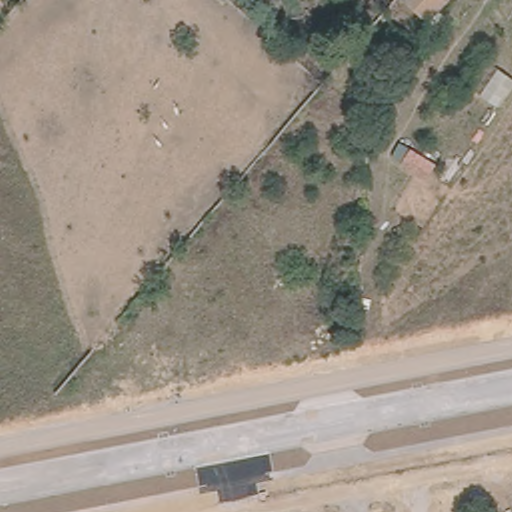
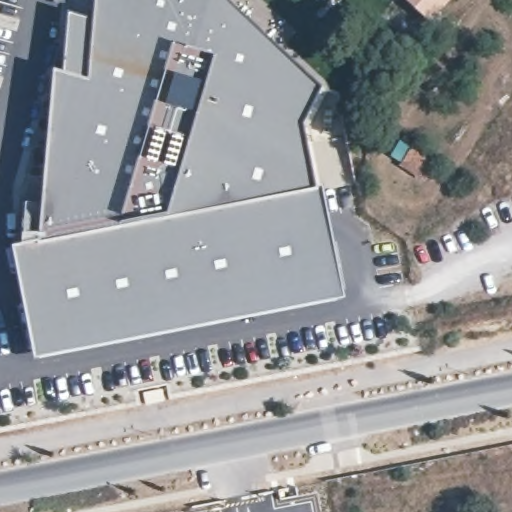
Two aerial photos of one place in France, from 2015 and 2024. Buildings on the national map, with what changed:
new [(43,244),(58,72),(91,82),(98,0),(229,0),(325,89),(306,127),(318,189),(324,188),(346,292),(37,353),(17,249),(43,244)]
unchanged [(410,0),(445,0),(429,18),(410,0)]
new [(97,21),(91,82),(66,74),(72,13),(97,21)]
demolished [(406,42),(371,87),(357,77),(391,31),(406,42)]
new [(37,353),(346,292),(348,300),(39,362),(37,353)]
new [(145,403),(143,392),(162,389),(164,399),(145,403)]

